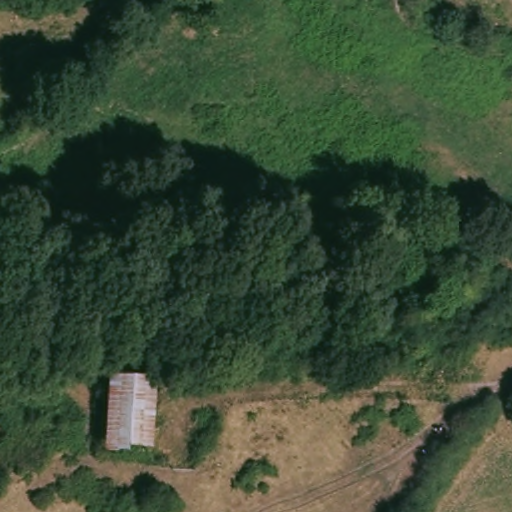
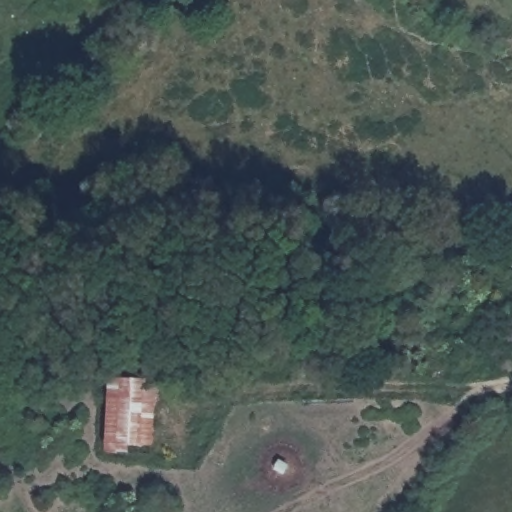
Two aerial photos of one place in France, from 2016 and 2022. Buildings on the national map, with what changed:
unchanged [(108,375),(159,376),(155,456),(104,455),(108,375)]

